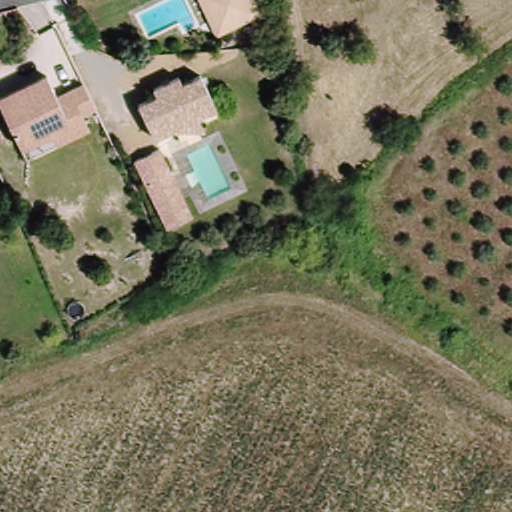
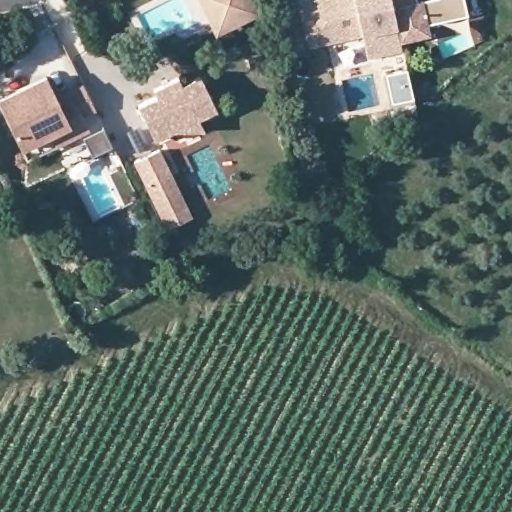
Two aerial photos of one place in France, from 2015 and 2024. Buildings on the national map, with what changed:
unchanged [(223,34),(206,0),(259,0),(265,12),(223,34)]
new [(357,33),(303,44),(294,0),(388,0),(397,42),(397,48),(362,56),(357,33)]
new [(426,35),(397,42),(388,0),(460,0),(462,16),(423,22),(426,35)]
unchanged [(5,67),(0,69),(0,56),(5,67)]
unchanged [(200,130),(182,125),(162,135),(143,104),(159,94),(157,87),(181,72),(187,77),(201,70),(222,103),(202,116),(207,124),(200,130)]
unchanged [(51,75),(55,91),(84,80),(97,110),(69,122),(72,132),(20,150),(0,99),(0,97),(51,75)]
unchanged [(168,231),(137,162),(163,151),(194,219),(168,231)]

